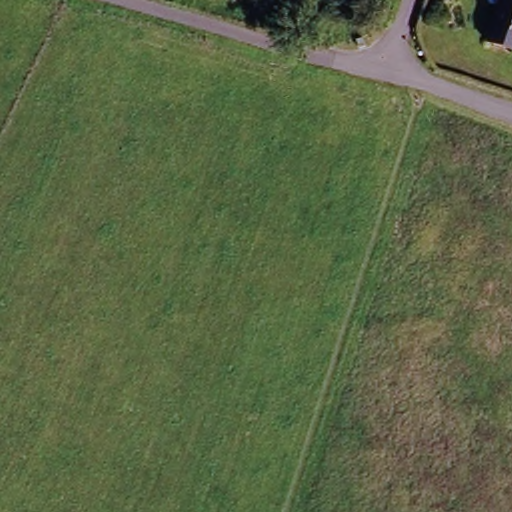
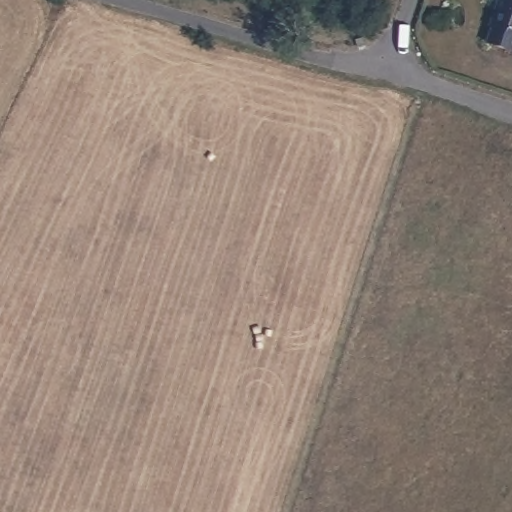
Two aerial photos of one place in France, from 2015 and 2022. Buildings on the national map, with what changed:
unchanged [(494,22),(492,21),(500,0),(512,0),(512,47),(488,37),(494,22)]

